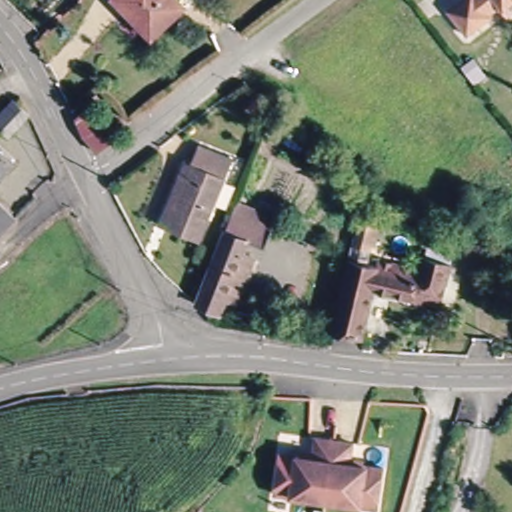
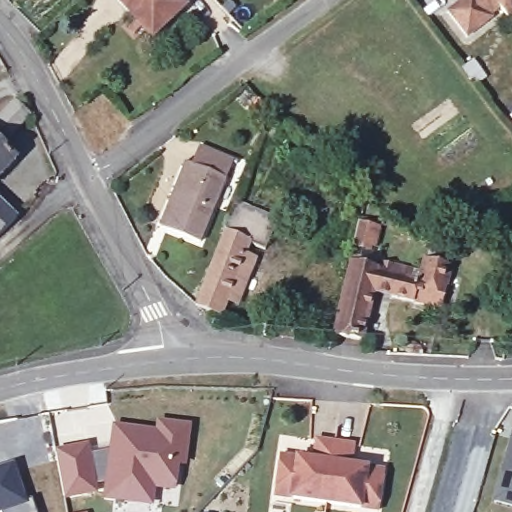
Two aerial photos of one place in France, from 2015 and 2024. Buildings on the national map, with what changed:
unchanged [(117,0),(179,0),(185,6),(171,19),(153,36),(148,31),(117,0)]
unchanged [(495,6),(485,15),(486,18),(462,36),(443,11),(458,0),(512,0),(512,9),(503,16),(495,6)]
unchanged [(485,76),(475,84),(463,69),(472,61),(485,76)]
unchanged [(16,125),(0,111),(14,96),(30,111),(16,125)]
unchanged [(266,106),(255,116),(248,110),(260,99),(266,106)]
unchanged [(119,138),(98,154),(84,137),(76,120),(94,106),(119,138)]
unchanged [(0,171),(0,140),(15,155),(0,171)]
unchanged [(185,164),(193,166),(200,148),(232,161),(200,242),(167,229),(160,226),(185,164)]
unchanged [(0,231),(0,199),(16,214),(0,231)]
unchanged [(266,247),(250,240),(244,255),(254,259),(235,304),(226,301),(220,315),(199,306),(201,298),(227,232),(236,209),(239,203),(277,218),(266,247)]
unchanged [(374,288),(362,337),(333,330),(358,218),(378,222),(369,261),(421,273),(425,255),(430,233),(456,239),(451,260),(441,303),(374,288)]
new [(127,498),(106,495),(108,479),(94,482),(95,489),(65,495),(56,451),(86,445),(88,453),(112,448),(115,425),(159,431),(160,421),(189,425),(184,461),(177,460),(174,486),(154,483),(151,501),(127,498)]
new [(495,499),(512,439),(512,503),(495,499)]
unchanged [(379,511),(274,496),(280,456),(314,461),(317,440),(353,445),(350,465),(385,470),(379,511)]
new [(28,499),(31,498),(36,512),(0,512),(0,465),(15,460),(28,499)]

